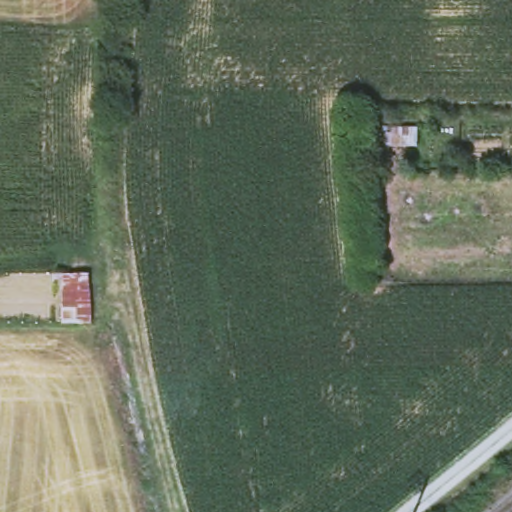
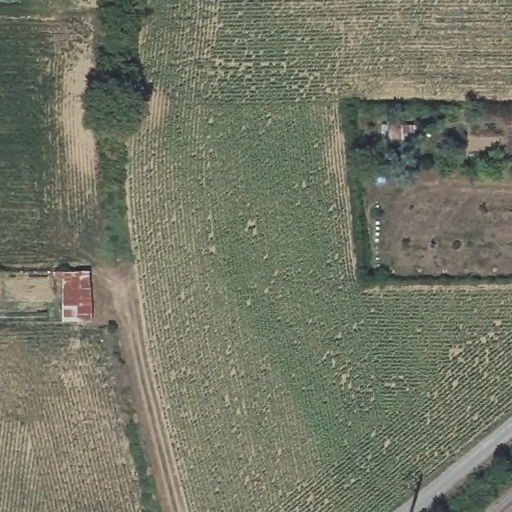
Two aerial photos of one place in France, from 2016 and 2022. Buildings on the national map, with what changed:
unchanged [(418,144),(391,145),(389,123),(419,123),(418,144)]
unchanged [(62,319),(61,260),(95,261),(93,320),(62,319)]

